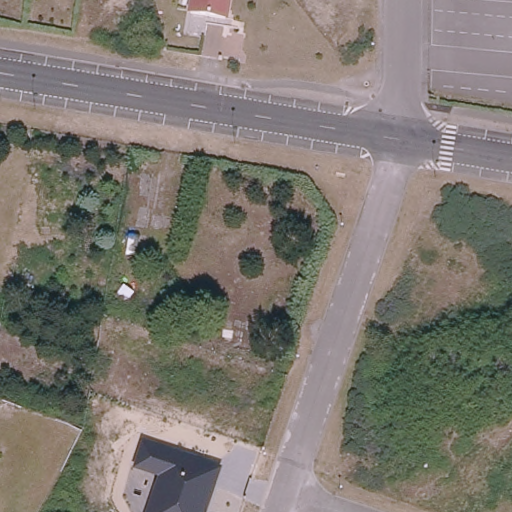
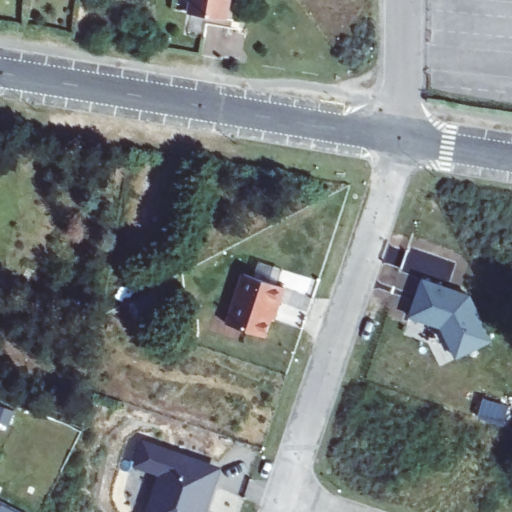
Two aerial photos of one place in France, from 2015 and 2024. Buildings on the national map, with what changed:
unchanged [(190,0),(232,0),(228,20),(188,14),(190,0)]
new [(250,275),(292,288),(287,303),(284,302),(273,338),(234,325),(250,275)]
new [(477,298),(499,343),(464,360),(449,330),(418,319),(430,282),(477,298)]
unchanged [(133,468),(141,442),(222,468),(207,512),(145,512),(158,476),(133,468)]

